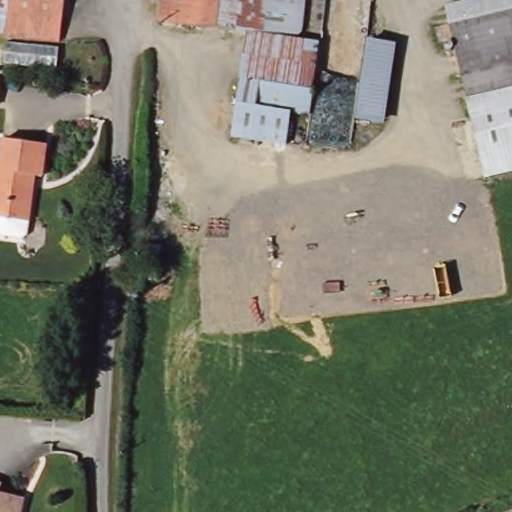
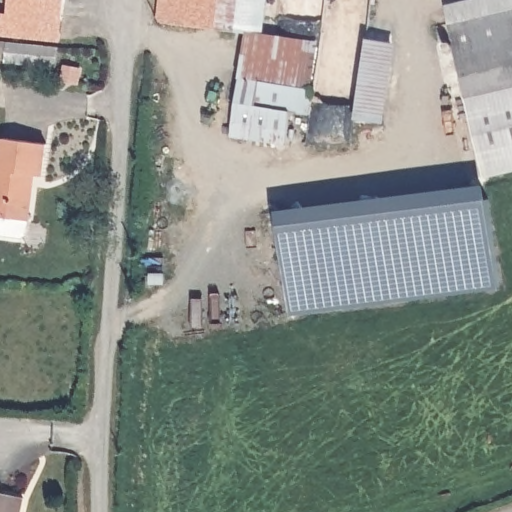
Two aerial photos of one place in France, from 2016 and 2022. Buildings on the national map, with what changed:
unchanged [(2,36),(7,0),(66,0),(60,43),(2,36)]
unchanged [(155,19),(159,0),(311,0),(303,42),(248,34),(155,19)]
unchanged [(453,50),(448,50),(445,50),(444,47),(444,45),(450,40),(443,5),(464,0),(512,0),(512,87),(464,100),(453,50)]
unchanged [(240,78),(248,34),(303,42),(319,45),(310,90),(240,78)]
unchanged [(396,47),(379,119),(356,114),(374,42),(396,47)]
new [(5,44),(58,50),(56,71),(3,65),(5,44)]
unchanged [(235,108),(240,78),(310,90),(304,119),(288,116),(235,108)]
unchanged [(512,87),(512,168),(483,174),(464,100),(512,87)]
unchanged [(283,144),(231,135),(235,108),(288,116),(283,144)]
unchanged [(43,180),(38,179),(26,241),(0,237),(0,160),(3,140),(50,145),(43,180)]
new [(500,290),(290,315),(274,213),(485,185),(500,290)]
unchanged [(2,491),(23,496),(19,512),(0,512),(0,482),(4,483),(2,491)]

